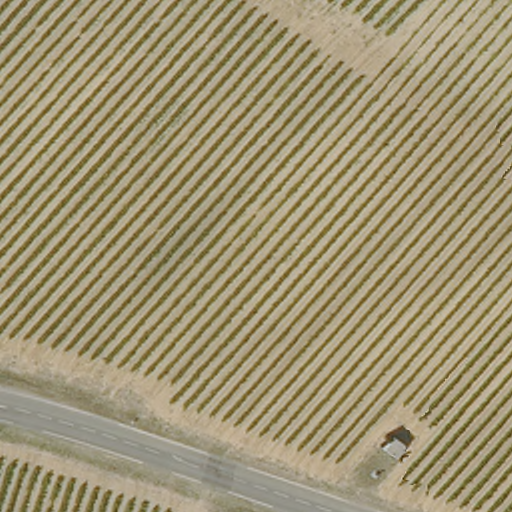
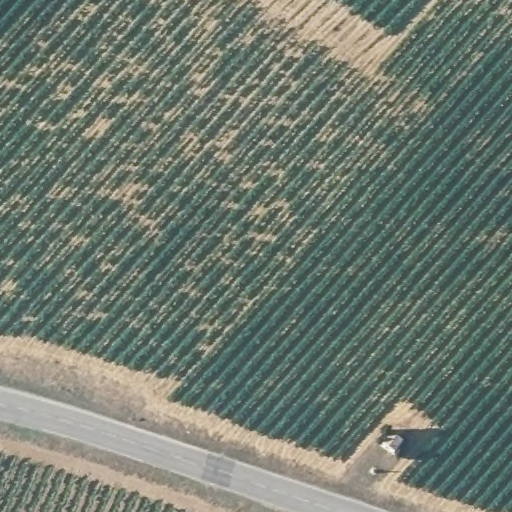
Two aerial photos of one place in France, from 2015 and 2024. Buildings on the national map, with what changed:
unchanged [(350,465),(355,452),(372,460),(365,473),(350,465)]

